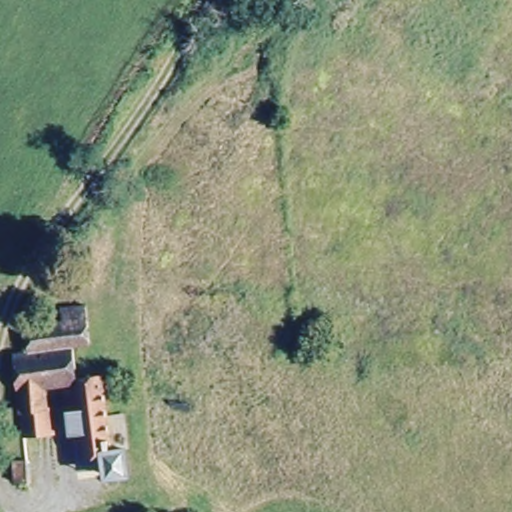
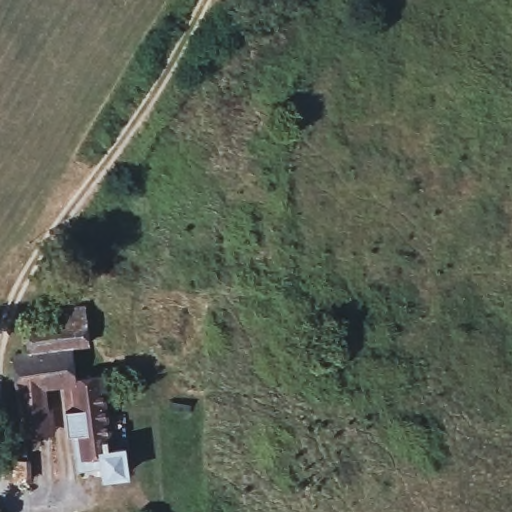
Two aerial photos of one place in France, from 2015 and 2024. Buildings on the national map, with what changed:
unchanged [(73,437),(67,437),(66,412),(68,412),(66,386),(45,389),(47,410),(53,410),(55,434),(23,437),(21,412),(17,355),(32,354),(30,329),(36,328),(66,325),(65,312),(90,310),(91,322),(92,348),(75,350),(78,385),(103,383),(110,459),(124,458),(125,483),(105,485),(104,471),(76,473),(73,437)]
unchanged [(26,461),(29,486),(17,487),(15,462),(26,461)]

